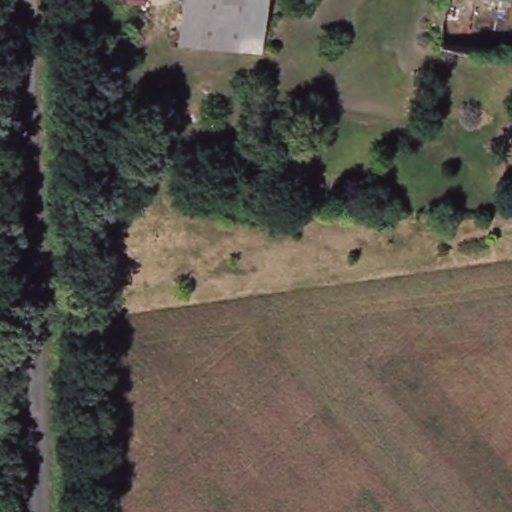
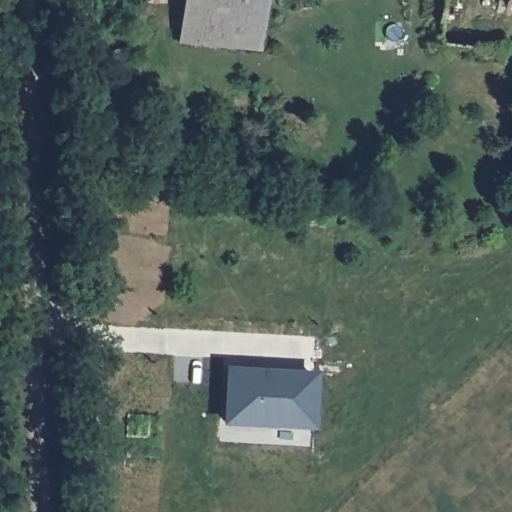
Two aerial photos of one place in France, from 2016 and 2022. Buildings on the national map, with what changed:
unchanged [(180,42),(183,0),(267,0),(263,51),(180,42)]
new [(315,371),(313,430),(221,426),(224,367),(315,371)]

